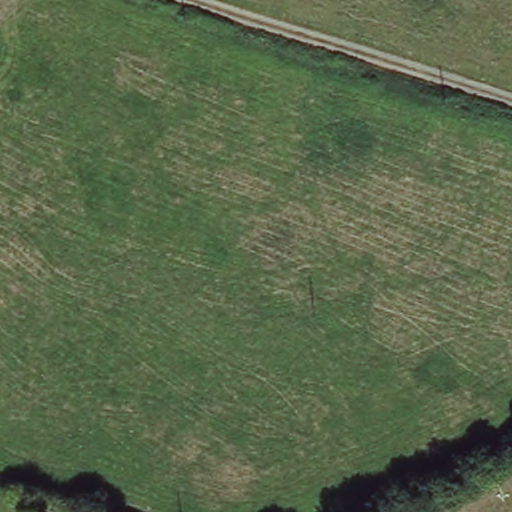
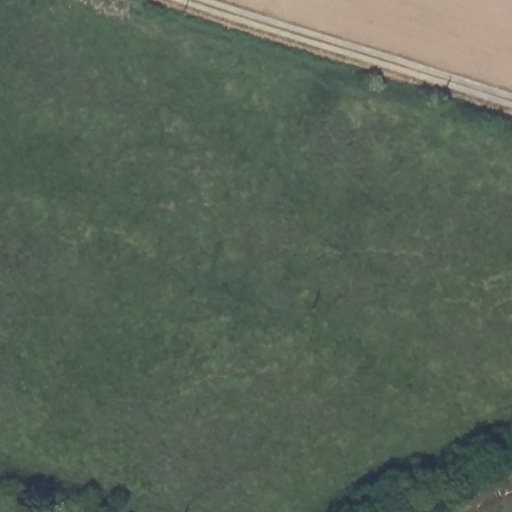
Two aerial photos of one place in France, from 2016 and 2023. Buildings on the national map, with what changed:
unchanged [(133,512),(123,512),(125,508),(133,512)]

